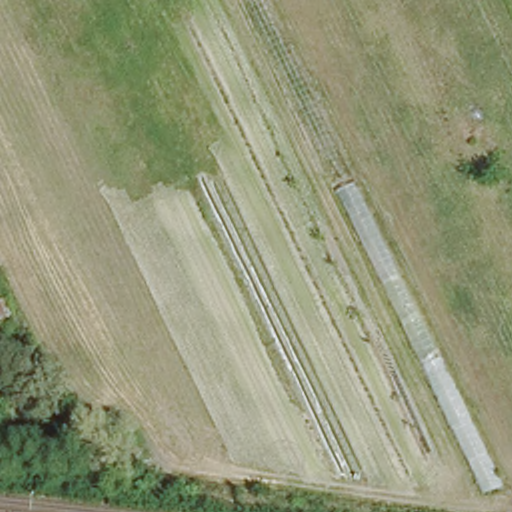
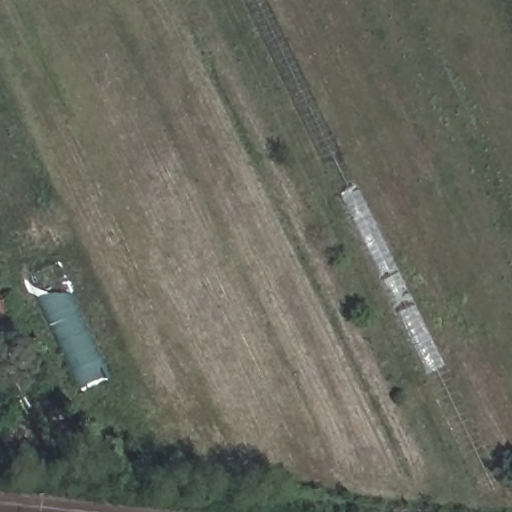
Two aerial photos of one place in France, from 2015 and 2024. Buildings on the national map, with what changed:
new [(80,392),(25,275),(57,264),(110,377),(80,392)]
unchanged [(0,305),(0,298),(3,304),(0,305)]

